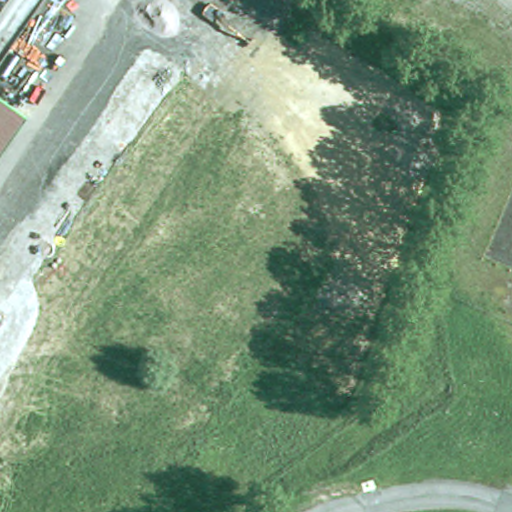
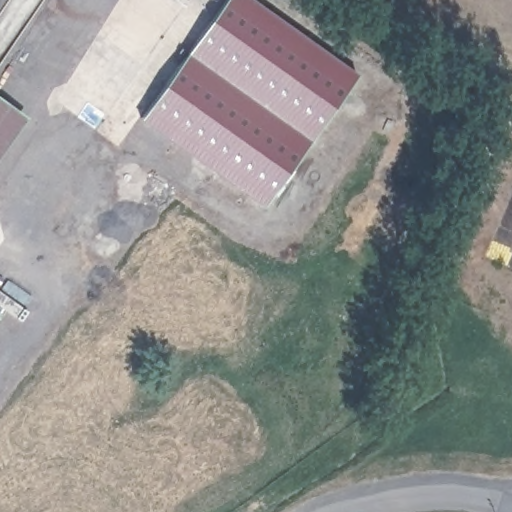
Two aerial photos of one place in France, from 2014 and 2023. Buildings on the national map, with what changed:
new [(309,140),(185,52),(223,0),(254,0),(356,73),(309,140)]
new [(262,207),(137,120),(185,52),(309,140),(262,207)]
unchanged [(0,113),(0,99),(7,103),(0,113)]
unchanged [(0,154),(0,113),(7,103),(26,117),(0,154)]

